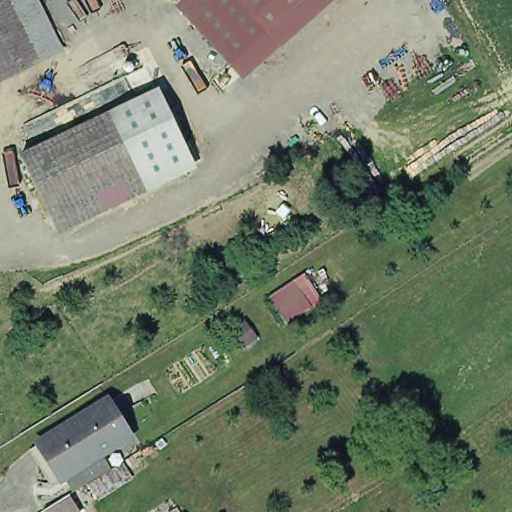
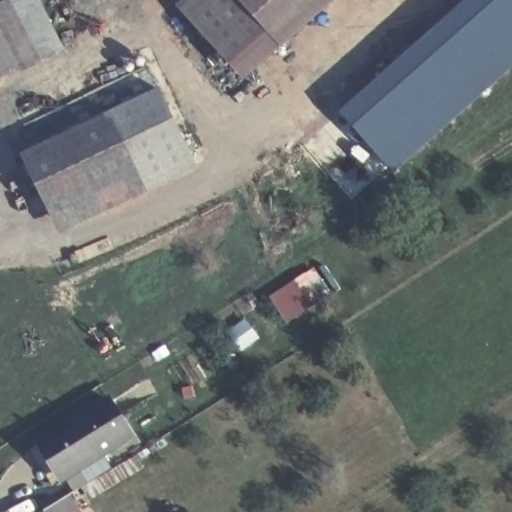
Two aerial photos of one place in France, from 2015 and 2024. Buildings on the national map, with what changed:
unchanged [(30,49),(35,61),(14,70),(0,77),(0,3),(6,0),(8,0),(30,49)]
unchanged [(10,0),(41,0),(65,49),(41,63),(10,0)]
unchanged [(177,7),(184,0),(333,0),(243,81),(177,7)]
new [(455,7),(463,0),(512,0),(512,68),(392,173),(337,112),(455,7)]
unchanged [(20,153),(159,89),(195,168),(59,235),(20,153)]
unchanged [(330,293),(286,326),(269,300),(313,269),(330,293)]
unchanged [(64,469),(54,475),(32,437),(42,432),(109,393),(130,428),(102,446),(112,463),(75,487),(64,469)]
unchanged [(70,490),(79,506),(67,512),(51,512),(47,504),(70,490)]

